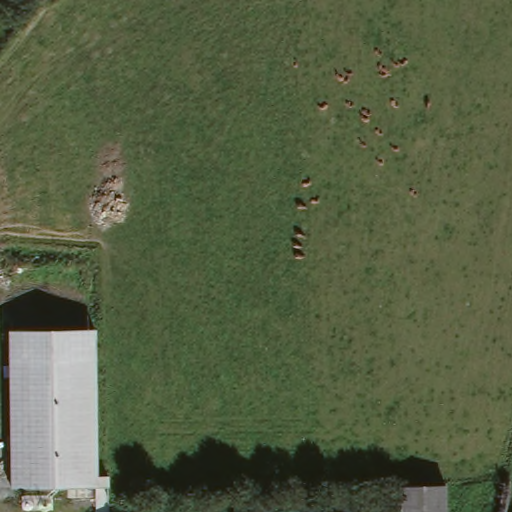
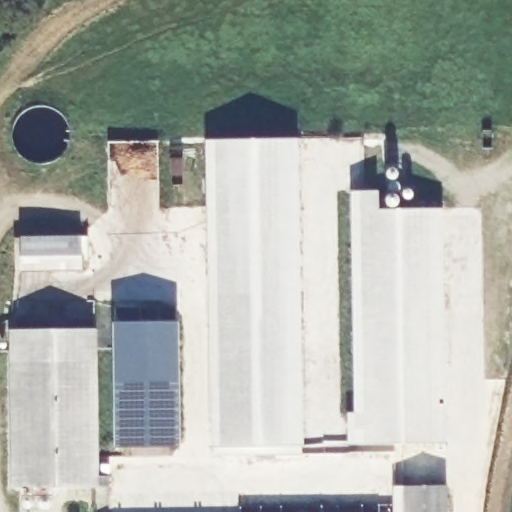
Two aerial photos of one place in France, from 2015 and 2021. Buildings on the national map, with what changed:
new [(212,446),(207,140),(298,140),(302,446),(300,456),(212,457),(212,446)]
new [(347,414),(356,413),(352,192),(379,192),(389,191),(388,169),(400,169),(401,210),(443,209),(447,443),(349,445),(347,414)]
new [(19,238),(81,236),(81,270),(19,272),(19,238)]
unchanged [(95,329),(97,477),(110,476),(109,487),(11,487),(8,331),(95,329)]
new [(393,503),(392,487),(447,486),(448,512),(239,512),(239,505),(393,503)]

